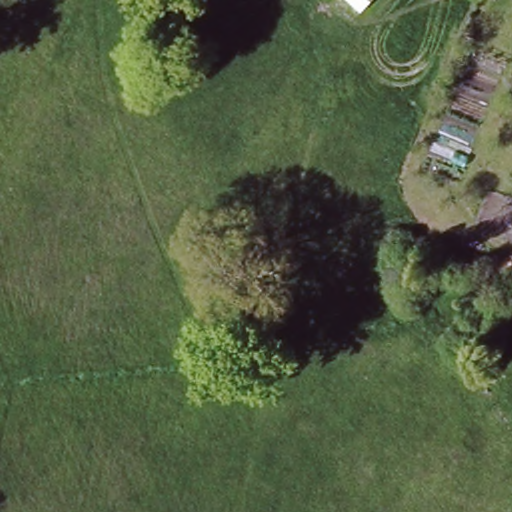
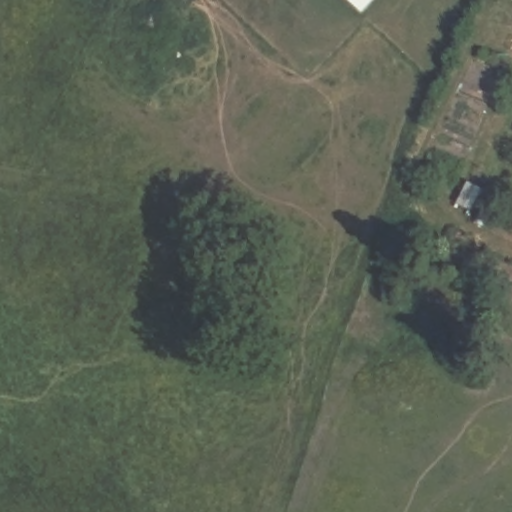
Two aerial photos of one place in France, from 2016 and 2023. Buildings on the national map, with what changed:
[]

